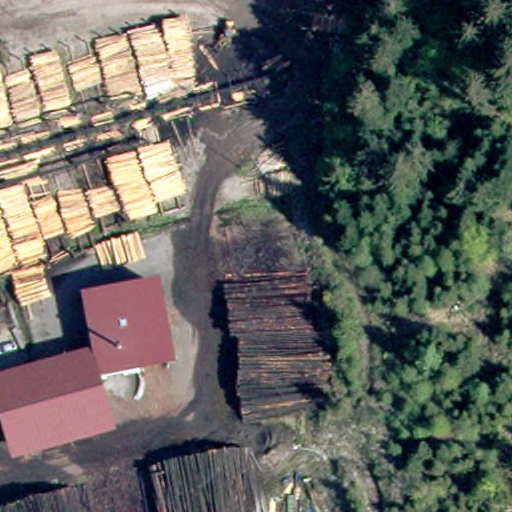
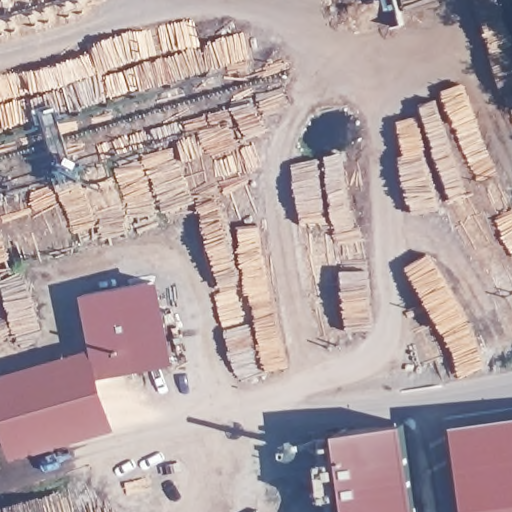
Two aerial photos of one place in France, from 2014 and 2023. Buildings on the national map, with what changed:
unchanged [(177,364),(101,379),(114,430),(12,458),(0,418),(0,373),(90,347),(80,296),(162,278),(177,364)]
new [(512,419),(512,512),(466,512),(455,426),(512,419)]
new [(415,512),(324,512),(322,499),(347,489),(339,432),(403,423),(415,512)]

